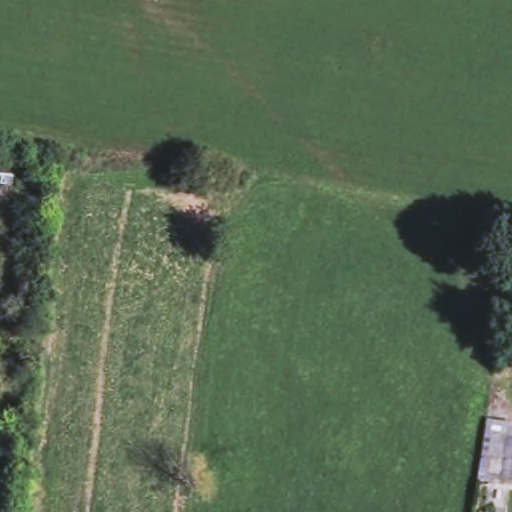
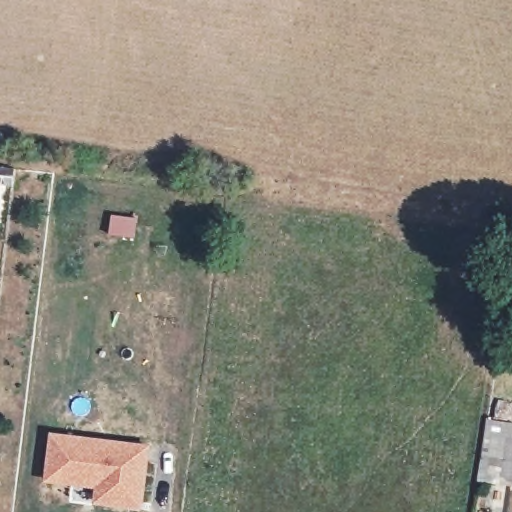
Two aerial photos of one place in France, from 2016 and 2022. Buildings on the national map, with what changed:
unchanged [(483,488),(489,430),(512,433),(512,493),(483,488)]
new [(100,488),(47,482),(54,437),(104,442),(119,445),(150,448),(144,503),(99,497),(100,488)]

